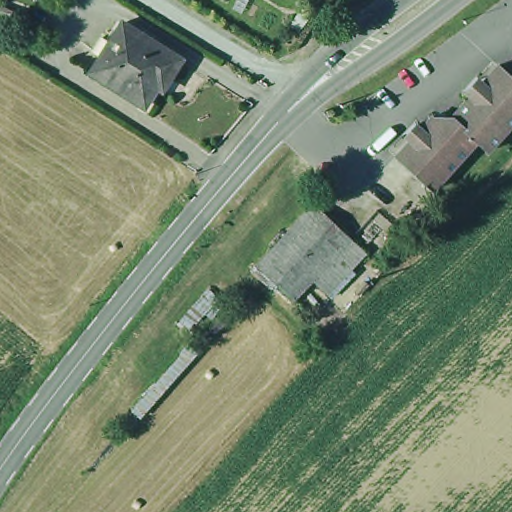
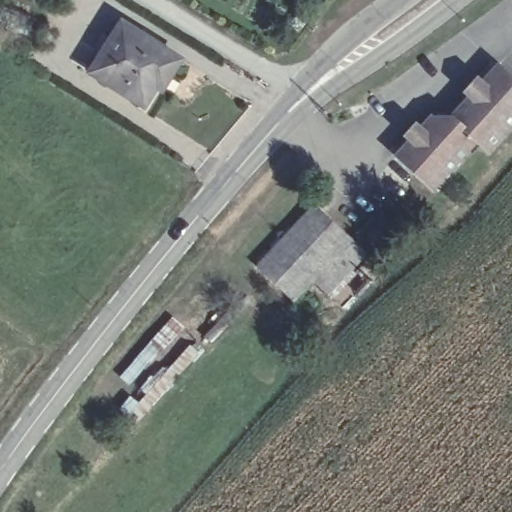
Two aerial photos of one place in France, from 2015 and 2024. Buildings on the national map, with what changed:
unchanged [(105,58),(95,52),(103,39),(113,45),(127,25),(187,61),(173,82),(167,78),(148,108),(95,74),(105,58)]
unchanged [(480,143),(435,191),(400,158),(433,119),(453,120),(475,97),(467,88),(478,79),(485,86),(503,68),(512,77),(512,132),(492,155),(480,143)]
unchanged [(353,242),(347,252),(362,268),(331,300),(315,286),(296,307),(261,280),(265,259),(312,207),(353,242)]
unchanged [(376,230),(387,240),(373,254),(363,243),(376,230)]

